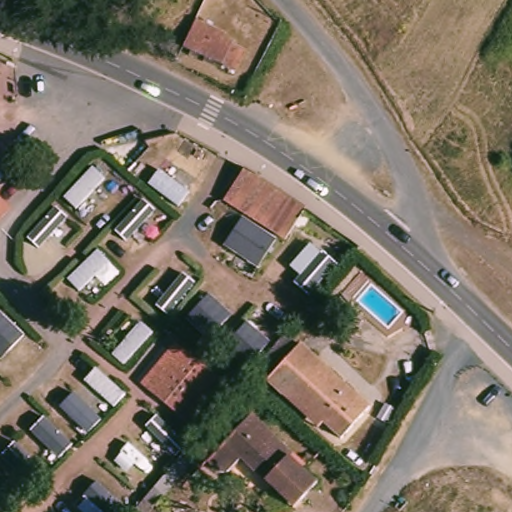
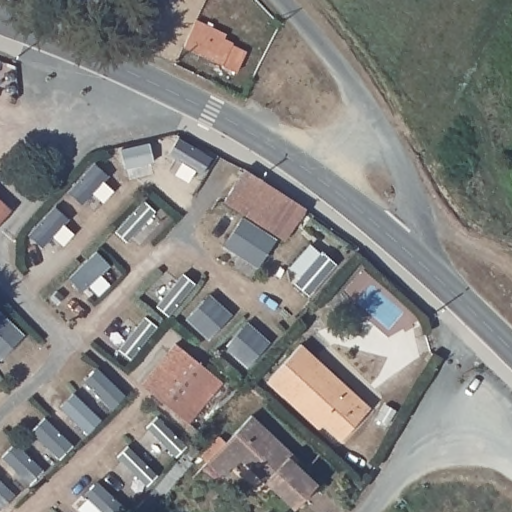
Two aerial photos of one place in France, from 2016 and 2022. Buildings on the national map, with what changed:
unchanged [(196,20),(222,35),(219,41),(225,44),(227,49),(241,57),(230,75),(181,46),(196,20)]
unchanged [(240,167),(252,175),(254,176),(300,207),(280,236),(220,196),(229,183),(240,167)]
unchanged [(0,209),(0,199),(5,204),(0,209)]
unchanged [(152,351),(160,342),(167,349),(175,340),(220,382),(183,421),(139,380),(160,357),(152,351)]
unchanged [(280,397),(264,382),(298,344),(367,407),(338,440),(320,423),(315,429),(280,397)]
unchanged [(263,480),(237,456),(220,473),(219,472),(211,472),(199,458),(201,455),(218,438),(222,442),(247,415),(288,452),(285,456),(313,482),(299,498),(291,506),(263,480)]

